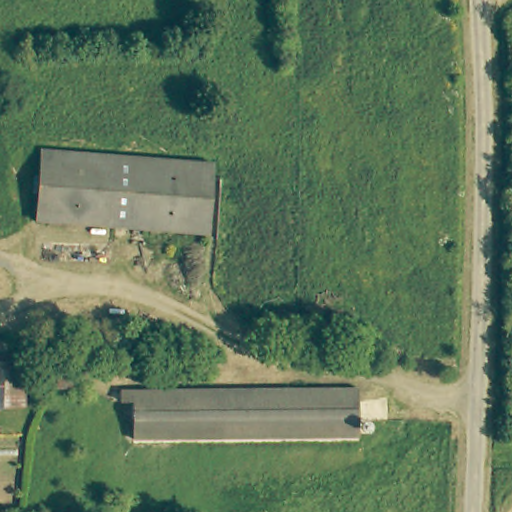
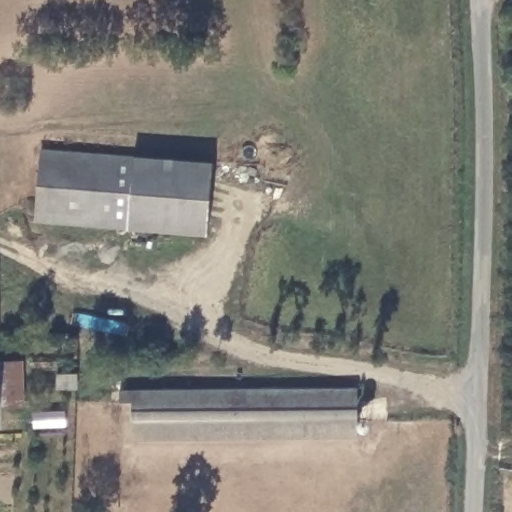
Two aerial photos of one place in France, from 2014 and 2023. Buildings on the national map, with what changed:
unchanged [(211,163),(205,235),(139,229),(33,220),(40,150),(211,163)]
unchanged [(25,359),(27,406),(3,407),(3,360),(25,359)]
unchanged [(3,360),(3,407),(0,407),(0,360),(3,360)]
unchanged [(75,371),(76,387),(58,388),(57,372),(75,371)]
unchanged [(354,388),(356,436),(128,438),(128,399),(119,399),(119,393),(354,388)]

